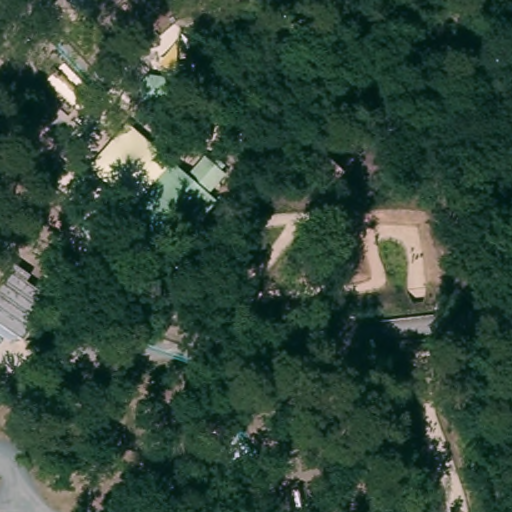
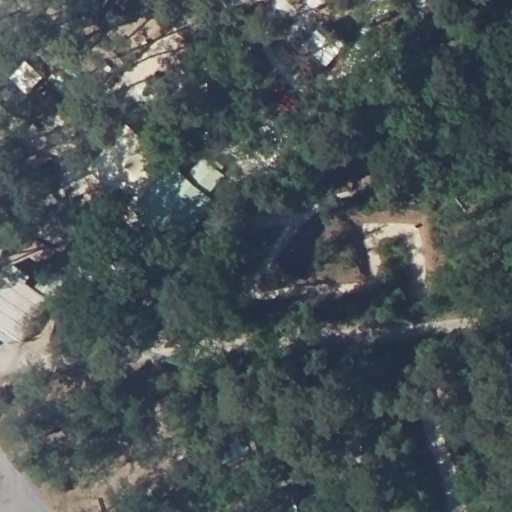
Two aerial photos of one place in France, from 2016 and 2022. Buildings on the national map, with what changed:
unchanged [(399,215),(390,206),(365,182),(358,175),(372,160),(400,132),(432,163),(441,172),(399,215)]
unchanged [(172,164),(187,177),(205,157),(227,179),(172,239),(137,202),(172,164)]
unchanged [(298,235),(306,243),(285,265),(277,256),(298,235)]
unchanged [(13,265),(51,293),(23,342),(12,344),(0,336),(0,285),(13,265)]

